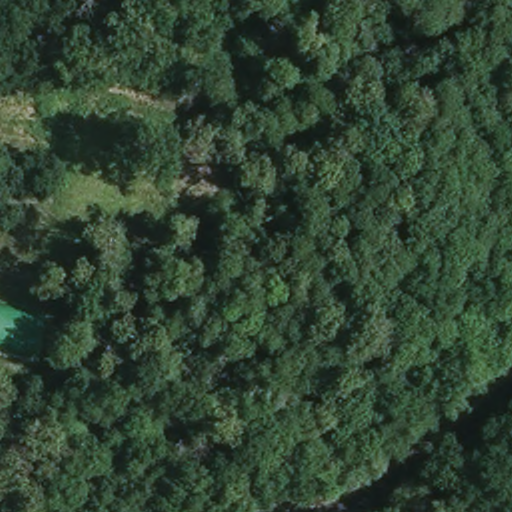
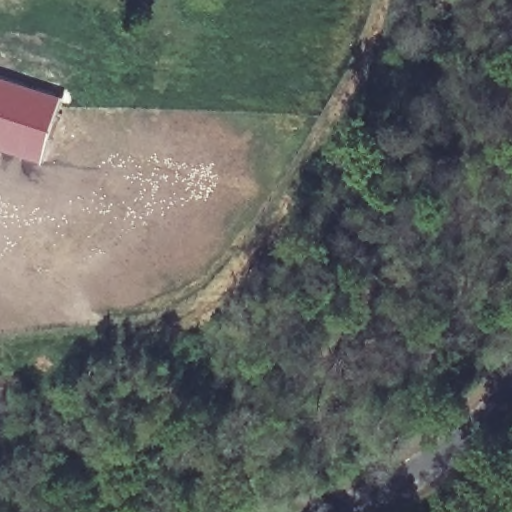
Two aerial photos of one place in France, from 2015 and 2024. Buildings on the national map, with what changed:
new [(43,164),(0,150),(0,75),(64,95),(43,164)]
demolished [(0,312),(42,320),(34,357),(0,350),(0,312)]

